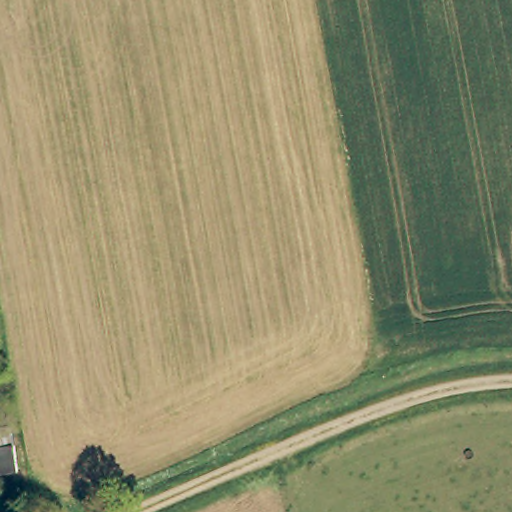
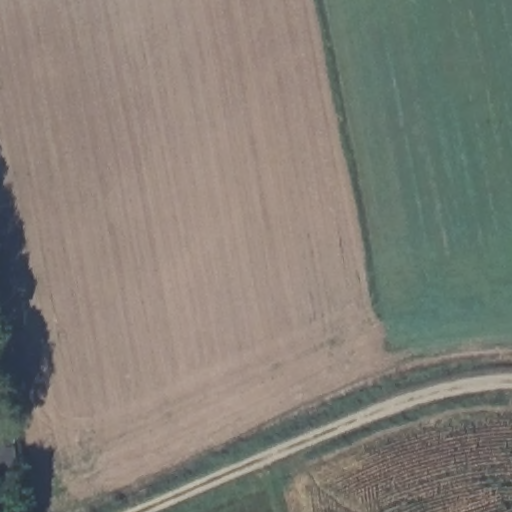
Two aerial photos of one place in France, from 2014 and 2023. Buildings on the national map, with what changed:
unchanged [(16,447),(21,476),(5,479),(1,450),(16,447)]

